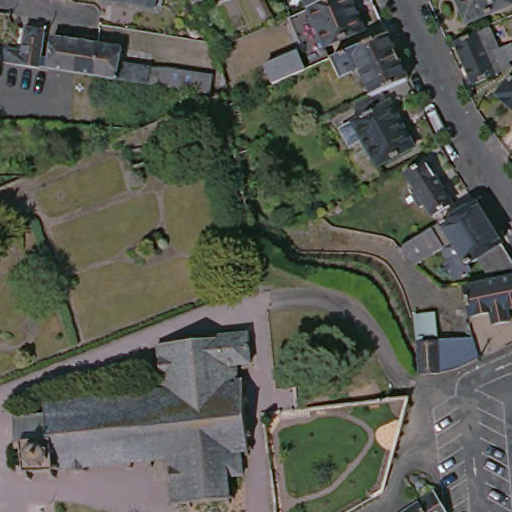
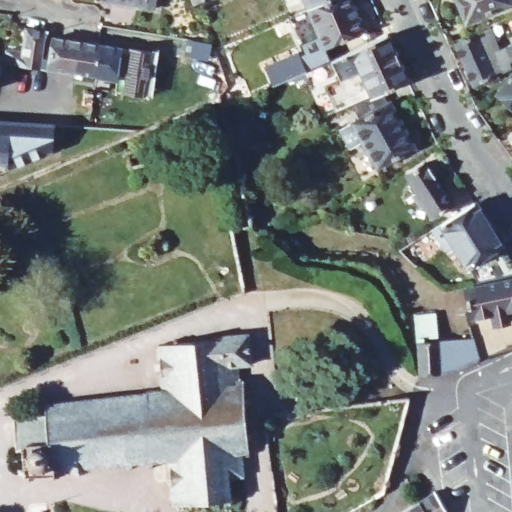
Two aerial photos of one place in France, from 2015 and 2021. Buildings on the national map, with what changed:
unchanged [(109,0),(156,0),(154,8),(109,0)]
unchanged [(201,0),(193,4),(192,0),(201,0)]
unchanged [(326,0),(350,0),(363,31),(325,47),(324,45),(303,52),(288,16),(307,8),(326,0)]
unchanged [(304,0),(326,0),(307,8),(304,0)]
unchanged [(466,27),(455,0),(508,0),(511,7),(466,27)]
unchanged [(38,34),(33,66),(0,61),(0,58),(1,50),(16,52),(20,27),(39,29),(38,34)]
unchanged [(498,49),(510,45),(512,47),(512,59),(508,61),(510,66),(473,82),(454,42),(488,27),(498,49)]
unchanged [(371,95),(359,69),(339,77),(332,59),(379,39),(389,34),(409,79),(380,91),(371,95)]
unchanged [(94,44),(94,46),(90,75),(78,73),(52,69),(42,67),(47,36),(94,44)]
unchanged [(188,91),(163,87),(90,75),(94,46),(94,44),(114,47),(113,61),(207,76),(204,94),(188,91)]
unchanged [(266,65),(296,52),(304,71),(296,75),(273,84),(266,65)]
unchanged [(512,75),(512,107),(496,94),(512,75)]
unchanged [(371,95),(380,91),(386,103),(389,102),(413,146),(378,166),(352,122),(360,117),(352,104),(371,95)]
new [(54,124),(52,150),(0,171),(0,121),(54,124)]
unchanged [(458,202),(438,216),(431,204),(425,207),(418,195),(422,191),(411,173),(432,161),(458,202)]
unchanged [(512,248),(512,272),(496,277),(485,258),(472,266),(464,254),(454,260),(447,249),(420,265),(417,262),(407,252),(403,249),(481,201),(512,248)]
unchanged [(497,324),(495,312),(475,316),(470,287),(512,278),(512,322),(501,323),(497,324)]
unchanged [(251,366),(236,367),(238,384),(241,383),(248,455),(241,455),(243,478),(228,480),(230,501),(172,506),(169,462),(26,475),(23,447),(17,447),(14,418),(47,416),(46,407),(163,393),(159,347),(217,343),(216,338),(248,336),(251,366)]
unchanged [(417,346),(473,342),(474,343),(480,362),(463,371),(451,374),(418,378),(417,346)]
unchanged [(450,486),(465,510),(462,512),(408,512),(450,486)]

